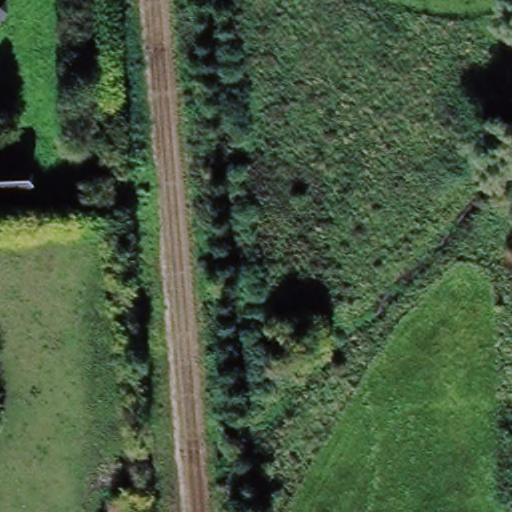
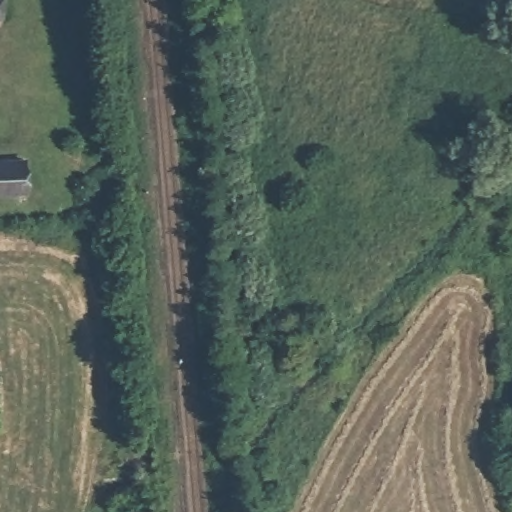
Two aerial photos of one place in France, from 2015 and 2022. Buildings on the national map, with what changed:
unchanged [(0,21),(0,0),(3,0),(4,21),(0,21)]
unchanged [(0,197),(0,157),(27,156),(30,196),(0,197)]

